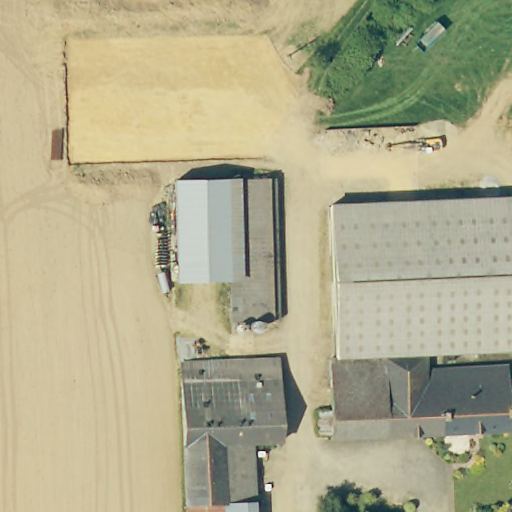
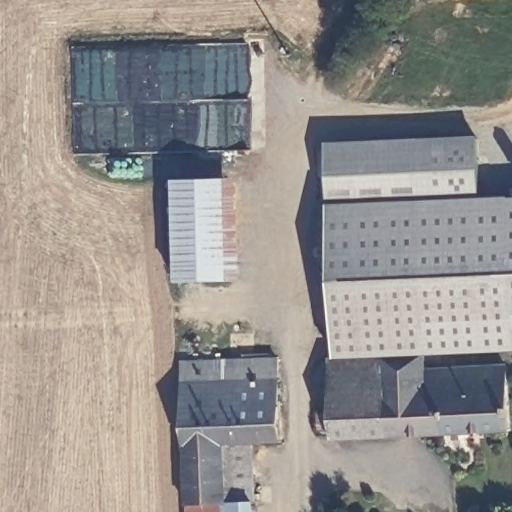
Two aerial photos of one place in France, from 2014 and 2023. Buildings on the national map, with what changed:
new [(324,142),(477,136),(481,199),(350,205),(333,205),(327,206),(324,142)]
demolished [(242,283),(240,180),(273,179),(275,282),(242,283)]
unchanged [(242,283),(205,284),(170,281),(170,182),(240,180),(242,283)]
unchanged [(350,205),(508,198),(512,198),(512,348),(430,352),(430,348),(377,349),(375,369),(328,371),(328,310),(327,206),(350,205)]
demolished [(276,322),(243,323),(242,283),(275,282),(276,322)]
unchanged [(430,352),(431,369),(512,373),(512,421),(511,436),(328,442),(328,430),(313,430),(316,406),(327,405),(328,371),(375,369),(377,349),(430,348),(430,352)]
unchanged [(182,356),(278,353),(280,416),(279,430),(253,430),(254,487),(225,489),(221,430),(186,432),(182,356)]
unchanged [(255,512),(187,512),(186,432),(221,430),(225,489),(254,487),(255,512)]

